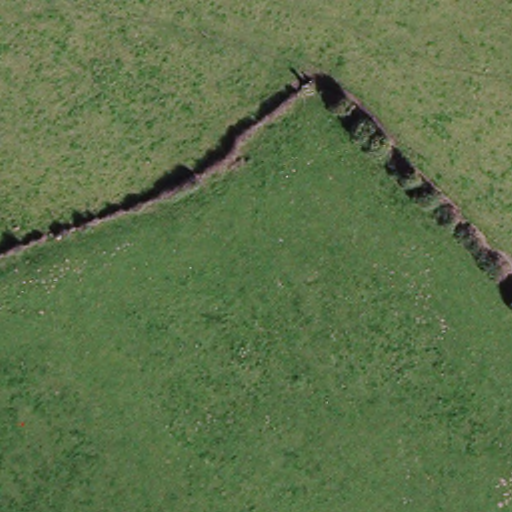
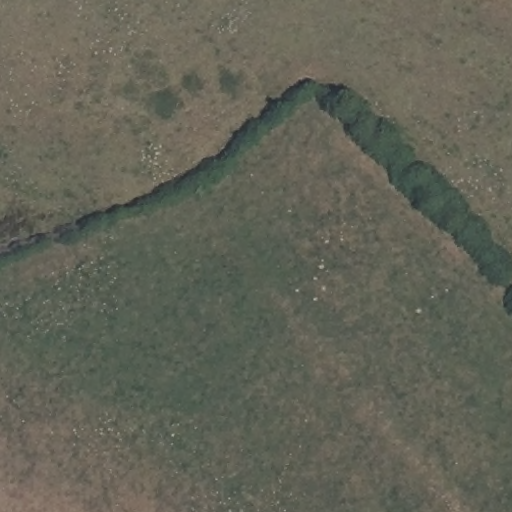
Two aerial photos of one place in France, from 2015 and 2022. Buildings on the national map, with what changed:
[]

